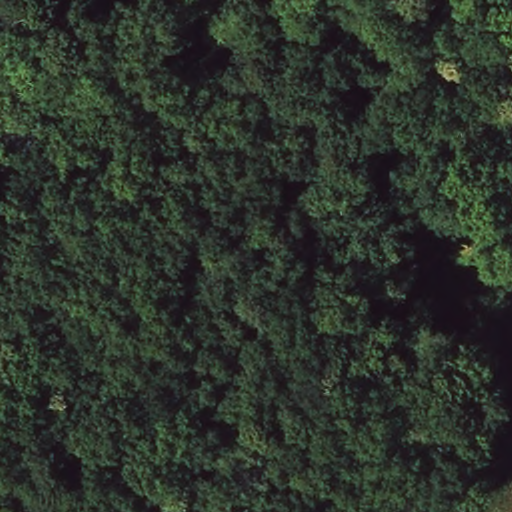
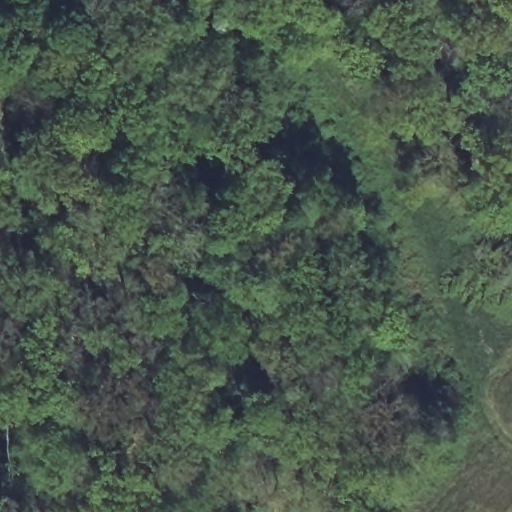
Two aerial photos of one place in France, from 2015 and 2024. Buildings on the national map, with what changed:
[]

